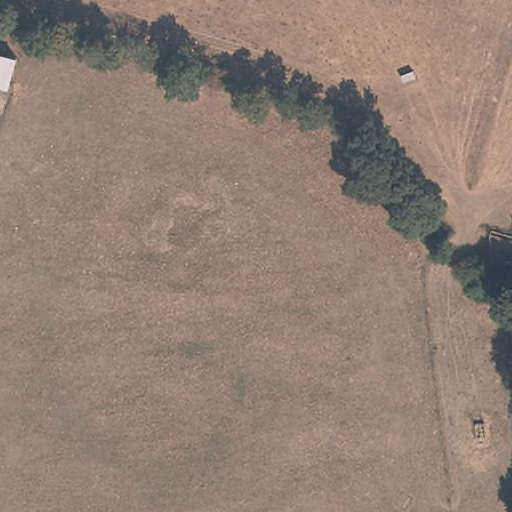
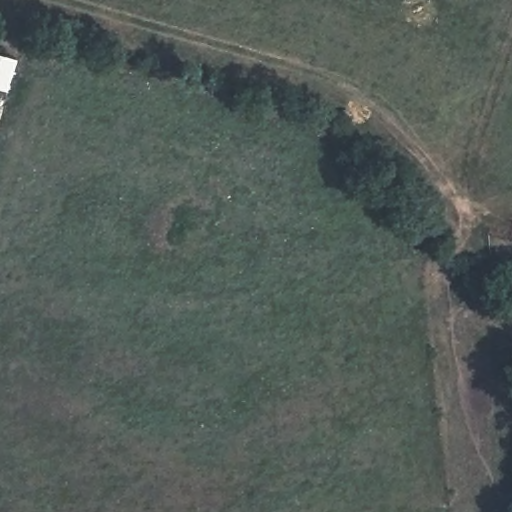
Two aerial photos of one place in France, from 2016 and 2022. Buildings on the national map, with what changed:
unchanged [(0,82),(0,50),(8,53),(6,60),(0,82)]

